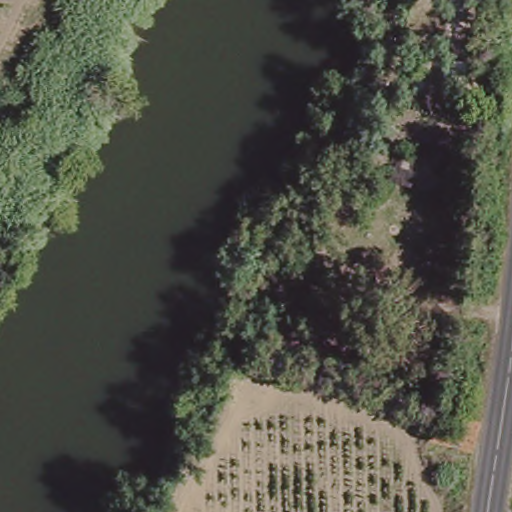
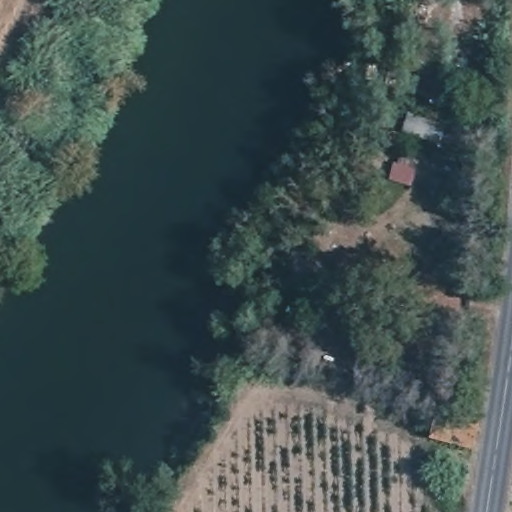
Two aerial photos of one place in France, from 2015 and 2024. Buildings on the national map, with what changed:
unchanged [(472,447),(430,435),(436,404),(446,407),(465,412),(480,416),(472,447)]

